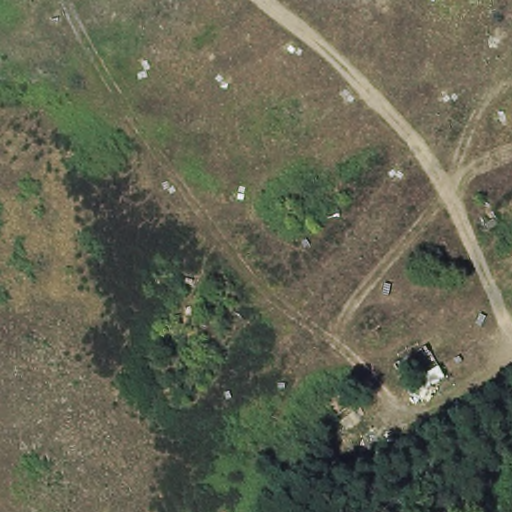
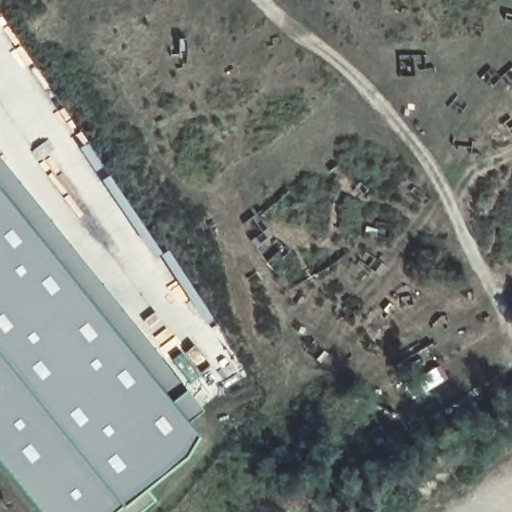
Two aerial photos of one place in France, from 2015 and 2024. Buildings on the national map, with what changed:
new [(193,435),(181,457),(144,486),(154,499),(138,512),(39,512),(0,464),(0,159),(185,388),(201,408),(186,425),(193,435)]

